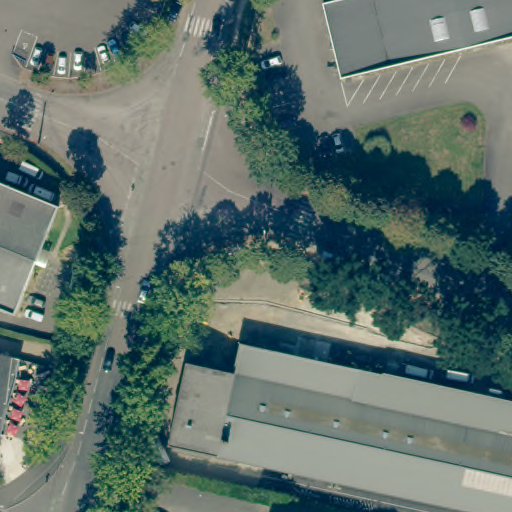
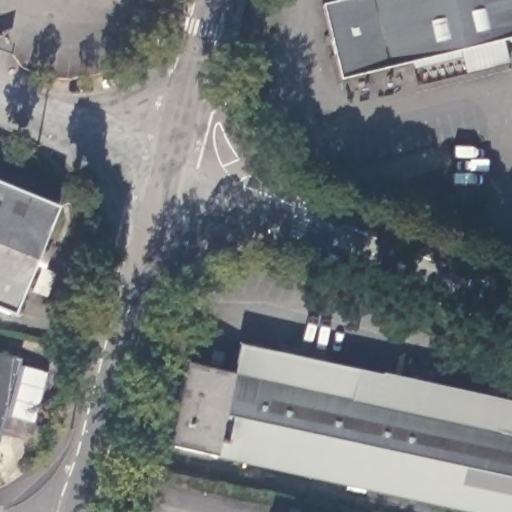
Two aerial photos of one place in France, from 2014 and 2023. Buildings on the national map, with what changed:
unchanged [(339,75),(322,1),(326,0),(512,0),(512,34),(339,75)]
unchanged [(61,202),(16,310),(0,303),(0,177),(39,194),(61,202)]
unchanged [(491,512),(164,442),(181,359),(229,369),(235,340),(377,370),(377,369),(512,398),(512,512),(491,512)]
unchanged [(0,420),(0,350),(17,355),(0,420)]

